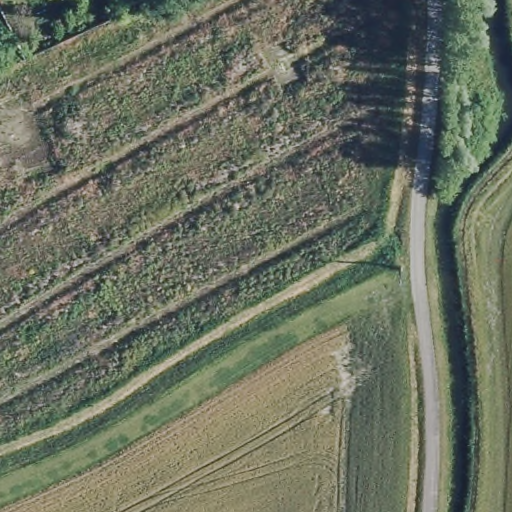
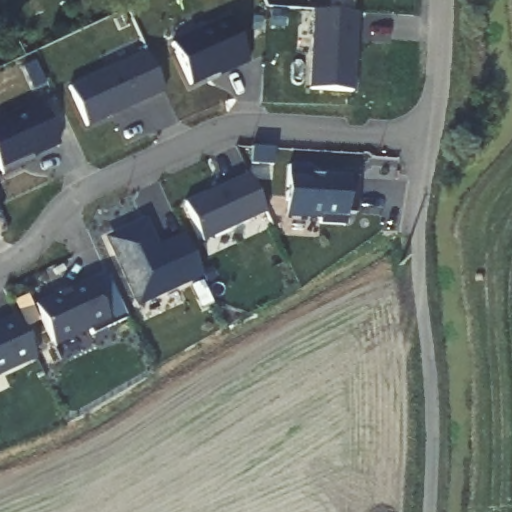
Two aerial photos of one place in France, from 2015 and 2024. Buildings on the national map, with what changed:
new [(357,13),(352,92),(310,89),(315,10),(357,13)]
new [(172,43),(229,18),(248,62),(218,75),(217,72),(190,84),(172,43)]
new [(85,125),(68,86),(146,51),(163,90),(85,125)]
new [(37,94),(55,137),(18,154),(20,157),(0,167),(0,111),(37,94)]
new [(310,168),(309,175),(357,178),(355,215),(345,214),(345,225),(318,223),(318,218),(284,216),(287,166),(310,168)]
new [(206,250),(185,203),(248,174),(270,221),(206,250)]
new [(109,243),(111,236),(144,222),(153,243),(153,245),(159,248),(183,237),(200,275),(137,305),(109,243)]
new [(135,339),(100,355),(97,349),(61,365),(43,325),(99,299),(104,311),(120,303),(135,339)]
new [(0,376),(0,322),(15,315),(35,360),(0,376)]

